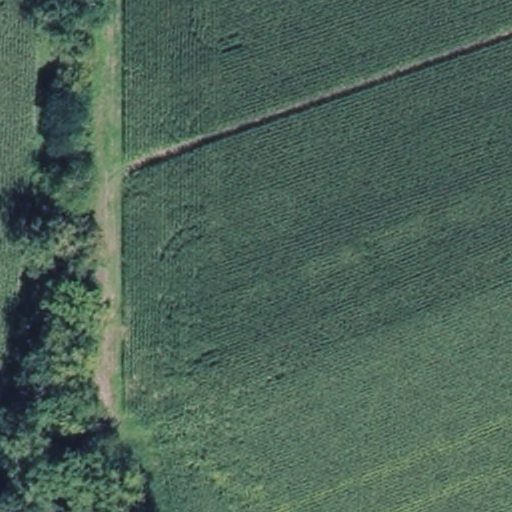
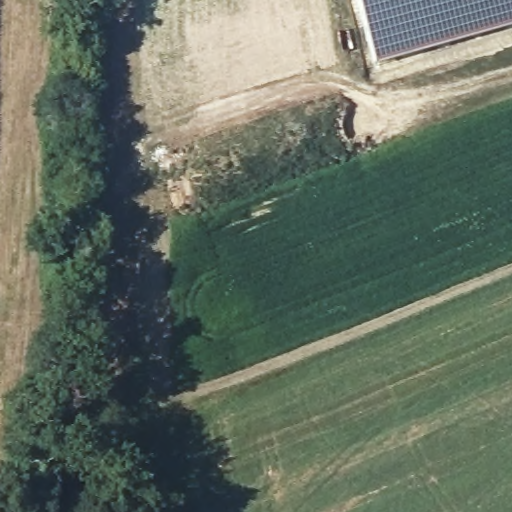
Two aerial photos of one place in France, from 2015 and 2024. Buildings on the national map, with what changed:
new [(512,27),(374,65),(355,0),(512,0),(512,27)]

